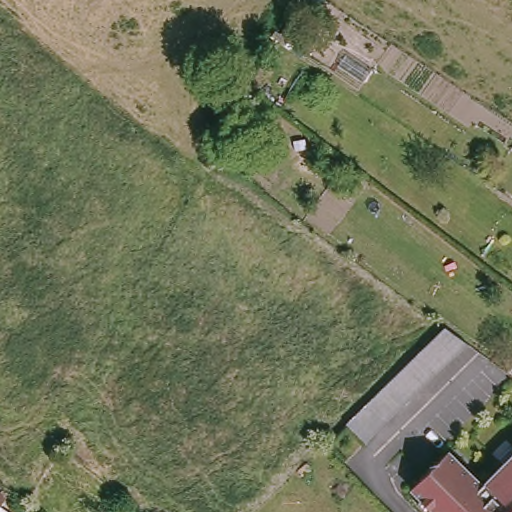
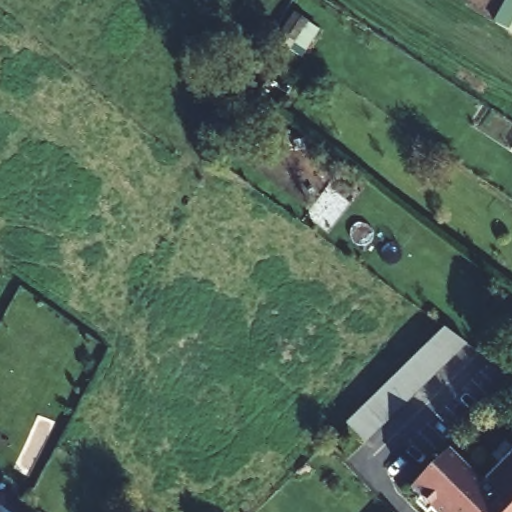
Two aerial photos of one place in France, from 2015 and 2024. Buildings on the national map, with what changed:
new [(493,22),(505,0),(512,0),(512,33),(493,22)]
unchanged [(466,343),(362,445),(343,425),(444,326),(466,343)]
unchanged [(413,490),(451,452),(484,486),(512,458),(512,512),(435,512),(413,490)]
unchanged [(13,512),(0,512),(0,494),(8,500),(4,505),(13,512)]
unchanged [(393,512),(388,512),(391,510),(393,512)]

